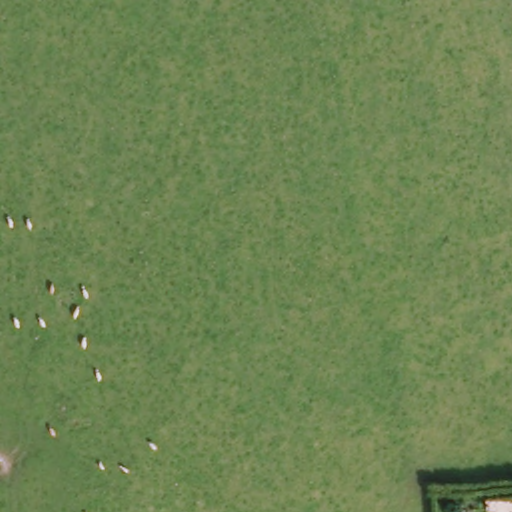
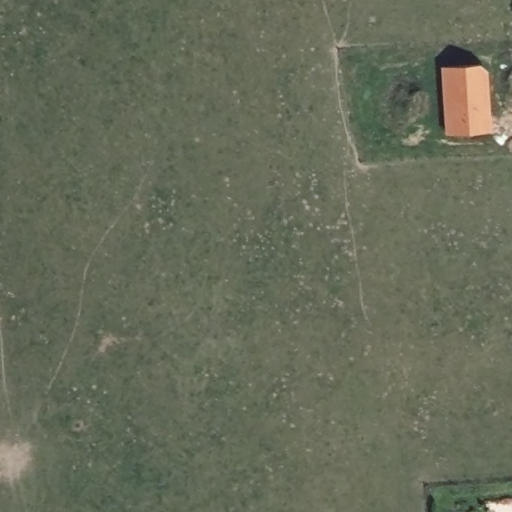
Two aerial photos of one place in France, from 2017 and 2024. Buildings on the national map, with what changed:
new [(480,63),(488,69),(493,131),(445,134),(440,66),(480,63)]

